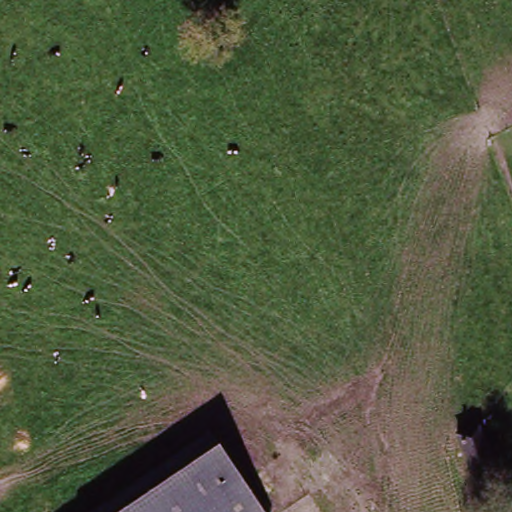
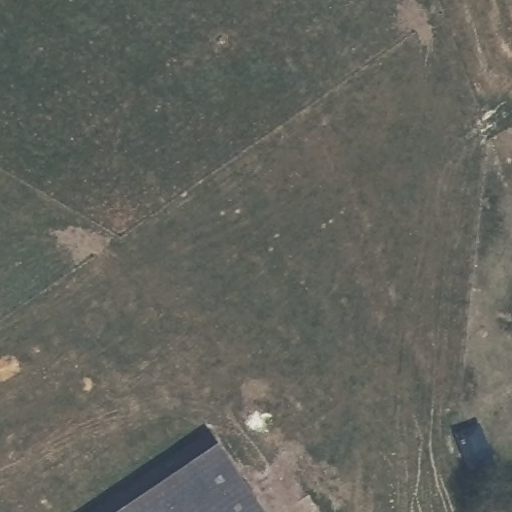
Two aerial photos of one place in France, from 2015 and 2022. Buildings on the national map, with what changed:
unchanged [(494,419),(508,455),(482,464),(468,428),(494,419)]
unchanged [(148,473),(206,432),(262,512),(143,512),(165,497),(148,473)]
unchanged [(92,512),(148,473),(165,497),(143,512),(92,512)]

